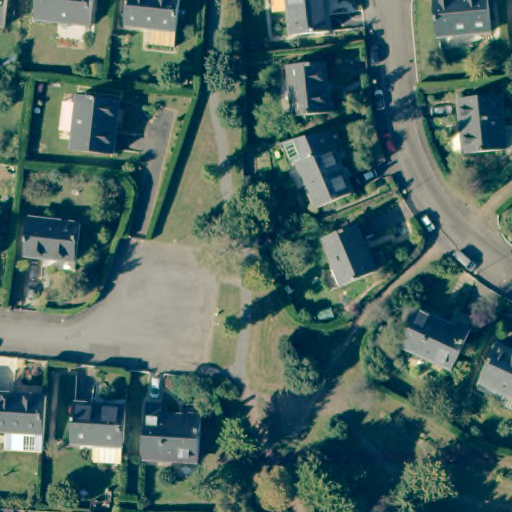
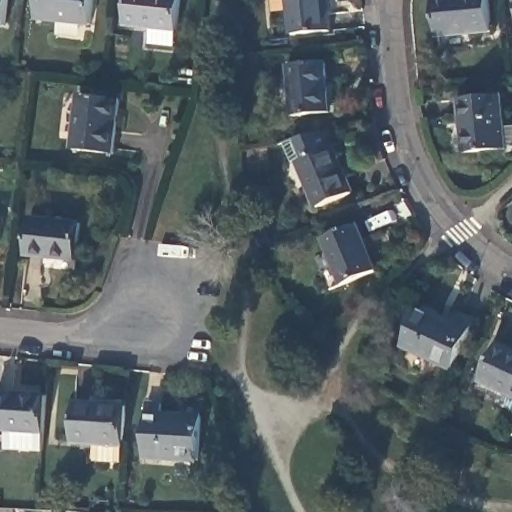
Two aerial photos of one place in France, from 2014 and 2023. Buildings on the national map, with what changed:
unchanged [(0,23),(0,0),(8,0),(6,24),(0,23)]
unchanged [(99,0),(98,21),(42,16),(44,0),(99,0)]
unchanged [(180,0),(177,36),(149,34),(151,19),(127,16),(129,0),(180,0)]
unchanged [(327,0),(330,30),(295,34),(291,0),(327,0)]
unchanged [(439,34),(436,0),(490,0),(493,29),(439,34)]
unchanged [(291,65),(326,61),(331,112),(296,116),(291,65)]
unchanged [(502,93),(505,125),(512,124),(512,143),(506,144),(506,146),(466,151),(461,97),(502,93)]
unchanged [(79,94),(119,98),(114,152),(74,148),(79,94)]
unchanged [(325,218),(305,171),(302,172),(293,150),(342,140),(347,153),(338,157),(358,204),(325,218)]
unchanged [(31,217),(81,222),(77,259),(27,254),(31,217)]
unchanged [(359,224),(378,270),(344,284),(325,239),(359,224)]
unchanged [(449,368),(399,345),(416,309),(450,324),(455,313),(471,320),(449,368)]
unchanged [(500,338),(512,344),(512,402),(503,398),(505,394),(480,382),(500,338)]
unchanged [(9,424),(0,423),(0,386),(49,389),(46,426),(45,444),(8,442),(9,424)]
unchanged [(124,457),(96,454),(97,436),(74,434),(76,398),(128,401),(125,438),(124,457)]
unchanged [(200,458),(144,454),(148,402),(163,403),(163,414),(185,416),(185,404),(203,406),(200,458)]
unchanged [(9,512),(0,512),(0,506),(10,507),(9,512)]
unchanged [(85,510),(101,511),(101,512),(85,512),(85,510)]
unchanged [(101,511),(122,512),(101,512),(101,511)]

